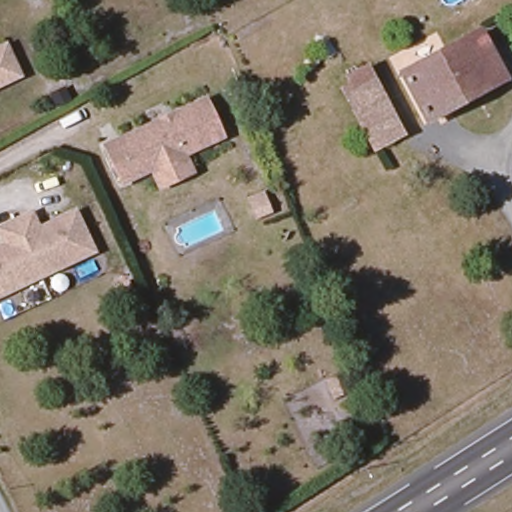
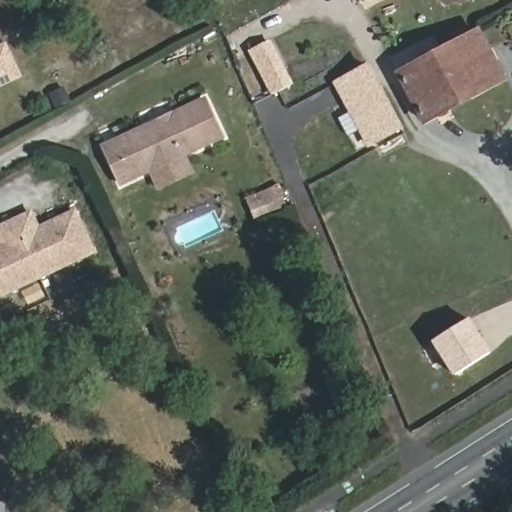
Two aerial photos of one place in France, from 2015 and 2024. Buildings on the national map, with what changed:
new [(358,0),(367,0),(360,4),(358,0)]
unchanged [(478,33),(503,80),(425,121),(400,75),(478,33)]
new [(268,42),(291,85),(273,95),(250,51),(268,42)]
unchanged [(5,45),(8,52),(19,75),(0,83),(0,48),(5,45)]
unchanged [(401,136),(374,150),(342,90),(350,85),(346,78),(365,68),(401,136)]
unchanged [(153,187),(145,169),(117,182),(100,146),(153,121),(166,115),(198,100),(215,137),(176,155),(184,173),(153,187)]
unchanged [(254,218),(247,201),(246,198),(260,192),(262,195),(269,212),(254,218)]
unchanged [(3,245),(0,239),(0,227),(25,212),(34,227),(69,206),(91,243),(0,297),(0,247),(3,245)]
new [(472,321),(493,355),(459,377),(438,344),(472,321)]

